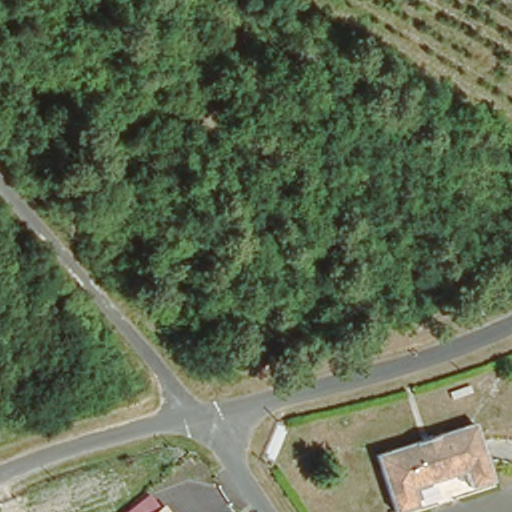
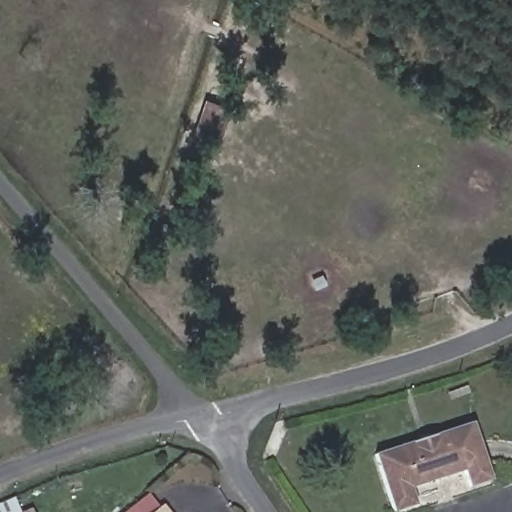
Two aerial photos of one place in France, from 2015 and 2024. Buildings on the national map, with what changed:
unchanged [(465,419),(474,446),(486,480),(463,486),(460,474),(458,470),(406,490),(412,508),(400,512),(390,512),(370,455),(465,419)]
unchanged [(150,494),(166,512),(125,512),(150,494)]

